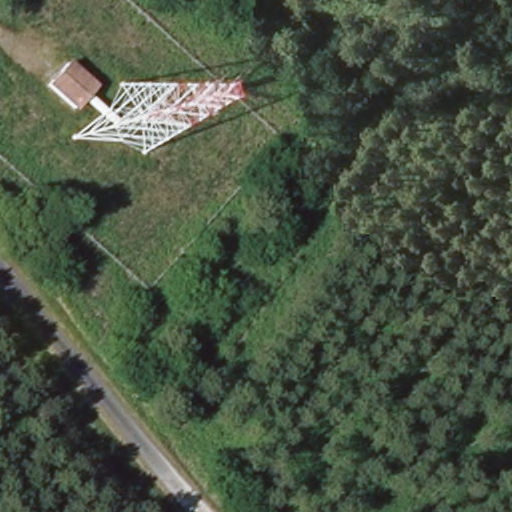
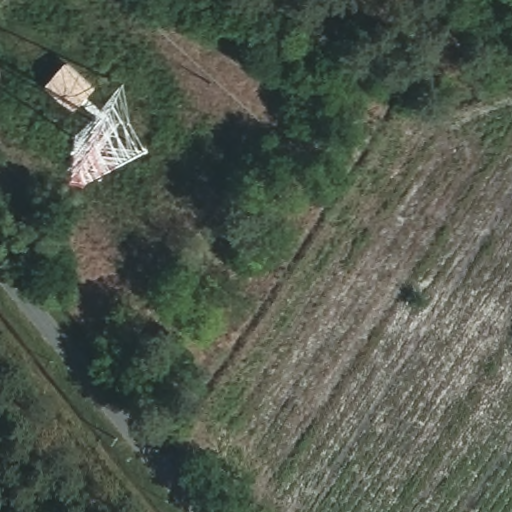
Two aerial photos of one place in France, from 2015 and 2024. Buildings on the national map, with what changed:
unchanged [(96,86),(73,113),(45,86),(66,61),(96,86)]

